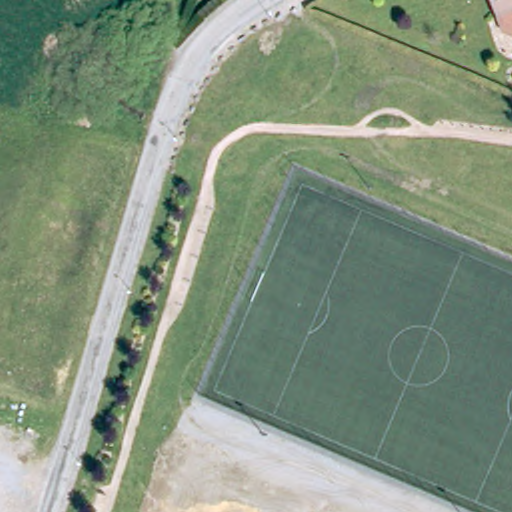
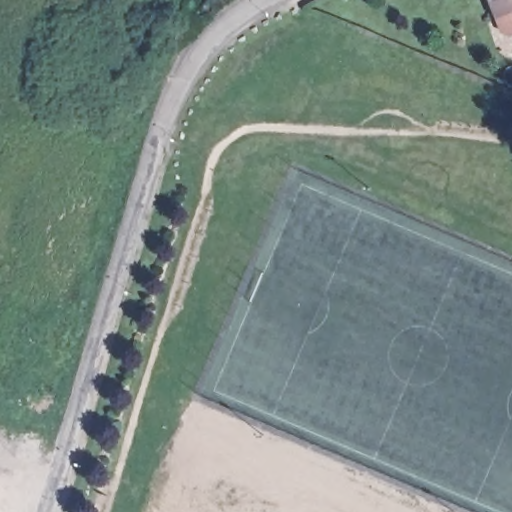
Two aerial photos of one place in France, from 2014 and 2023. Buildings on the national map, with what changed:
unchanged [(509,31),(502,15),(496,0),(512,0),(512,30),(509,31)]

